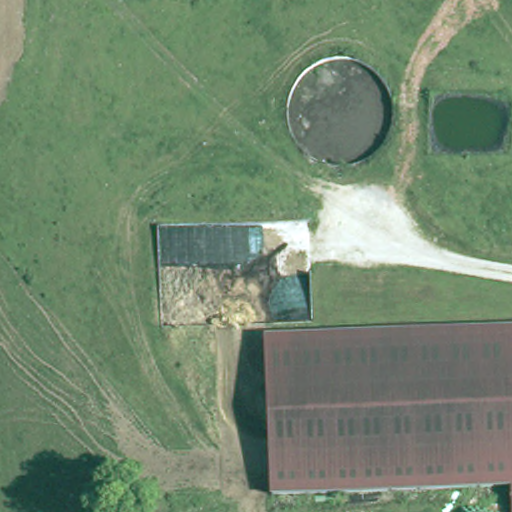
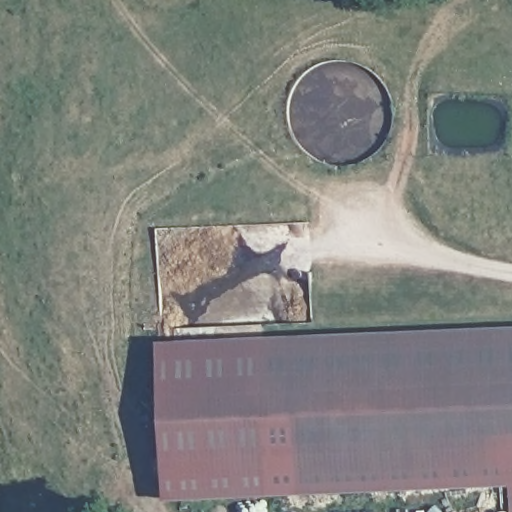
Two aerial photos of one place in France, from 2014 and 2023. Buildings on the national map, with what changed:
unchanged [(512,490),(270,498),(266,341),(512,331),(512,490)]
new [(266,336),(266,341),(270,494),(166,500),(159,340),(266,336)]

